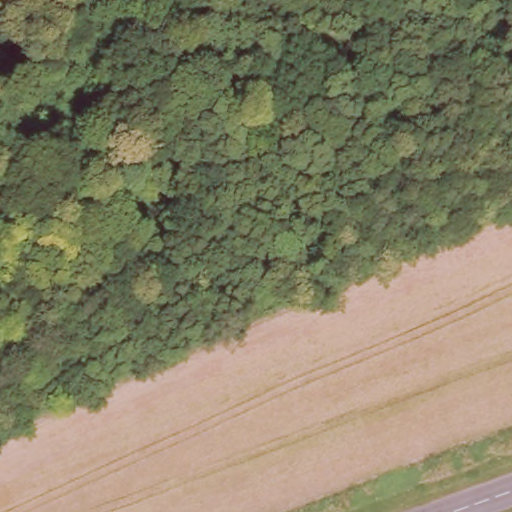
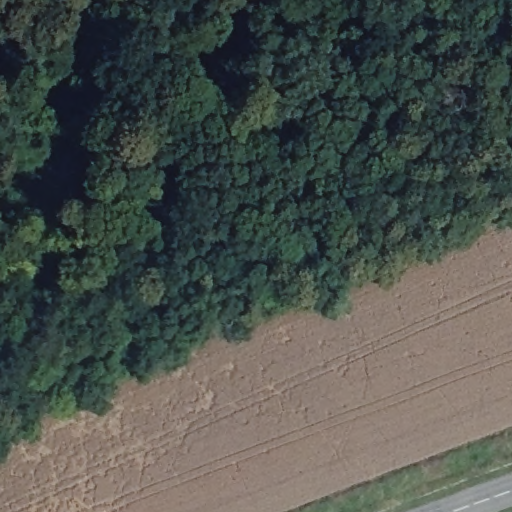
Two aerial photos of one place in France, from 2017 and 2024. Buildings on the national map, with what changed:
unchanged [(229,99),(240,89),(247,97),(267,81),(287,105),(256,130),(229,99)]

